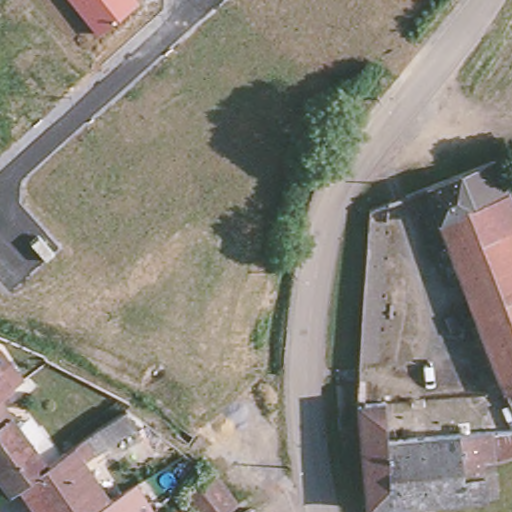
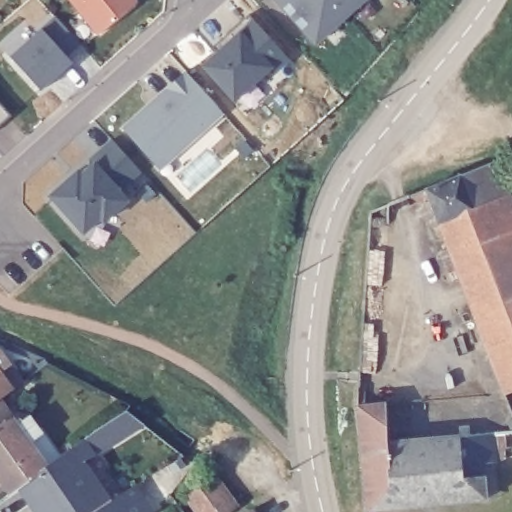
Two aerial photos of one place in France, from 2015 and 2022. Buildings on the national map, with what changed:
unchanged [(137,0),(98,34),(71,0),(137,0)]
new [(365,0),(315,46),(275,0),(365,0)]
new [(81,42),(69,58),(72,61),(41,91),(9,56),(40,27),(55,16),(81,42)]
new [(203,69),(229,43),(224,38),(249,17),(289,62),(276,75),(271,69),(234,102),(203,69)]
new [(224,114),(161,170),(121,127),(184,70),(224,114)]
unchanged [(11,117),(0,127),(0,106),(11,117)]
new [(141,174),(119,192),(128,201),(104,225),(100,221),(85,235),(51,198),(62,188),(64,190),(92,165),(88,162),(112,141),(141,174)]
unchanged [(433,185),(503,156),(512,181),(512,388),(433,185)]
demolished [(383,199),(382,237),(381,237),(376,366),(353,365),(364,207),(383,199)]
unchanged [(1,347),(9,360),(0,366),(0,347),(1,347)]
unchanged [(11,386),(0,394),(0,370),(11,386)]
unchanged [(11,412),(15,418),(20,414),(23,417),(30,412),(42,428),(30,437),(47,460),(47,461),(19,482),(20,483),(12,490),(0,474),(0,398),(11,412)]
unchanged [(351,401),(379,398),(381,438),(382,452),(356,454),(351,401)]
unchanged [(19,482),(47,461),(47,460),(100,422),(126,406),(143,419),(84,456),(109,495),(112,493),(114,495),(87,512),(39,512),(20,483),(19,482)]
unchanged [(487,428),(512,426),(512,449),(489,456),(477,457),(480,494),(361,505),(356,454),(382,452),(381,438),(487,428)]
unchanged [(233,512),(196,512),(185,497),(199,487),(192,478),(203,471),(209,478),(213,476),(237,509),(233,512)]
unchanged [(118,501),(140,488),(153,509),(148,512),(87,512),(114,495),(118,501)]

